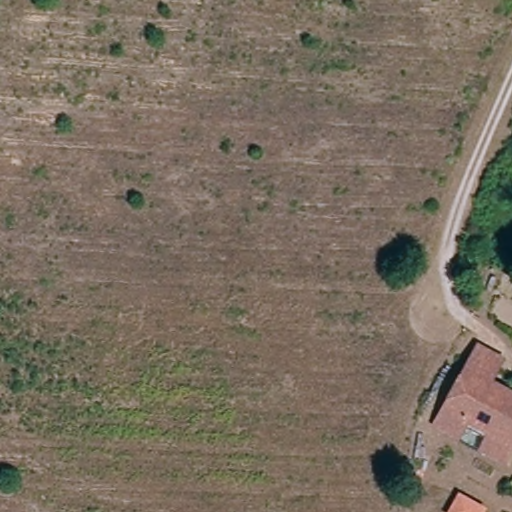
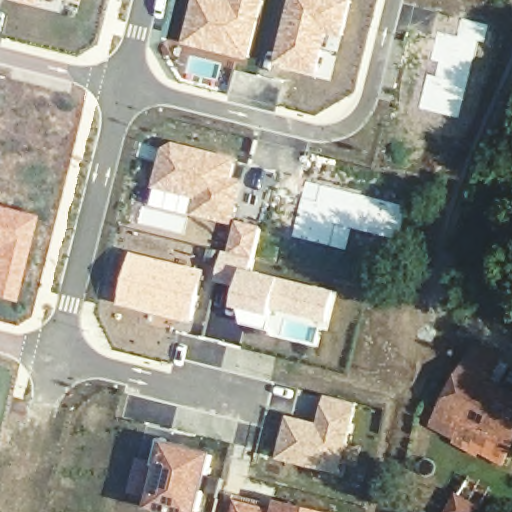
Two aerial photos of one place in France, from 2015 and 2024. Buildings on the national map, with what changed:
new [(43,7),(18,0),(44,0),(43,7)]
new [(83,2),(74,0),(83,0),(83,2)]
new [(193,0),(267,0),(250,61),(183,43),(193,0)]
new [(289,0),(353,0),(337,57),(328,54),(318,77),(274,65),(289,0)]
new [(164,149),(165,146),(173,142),(177,142),(240,156),(235,177),(246,180),(235,226),(191,215),(153,206),(155,190),(164,149)]
new [(305,181),(343,191),(338,225),(349,229),(344,249),(292,236),(305,181)]
new [(12,302),(0,299),(0,206),(34,215),(12,302)]
new [(209,248),(228,252),(237,220),(263,227),(252,268),(248,267),(241,287),(218,282),(221,267),(205,262),(209,248)]
new [(134,252),(205,272),(192,323),(120,305),(134,252)]
new [(241,287),(248,267),(252,268),(336,291),(326,325),(274,308),(268,330),(242,323),(242,310),(236,308),(241,287)]
unchanged [(491,452),(443,426),(474,366),(497,377),(501,371),(512,376),(512,463),(491,452)]
new [(289,415),(318,422),(326,394),(361,405),(342,476),(278,460),(289,415)]
new [(139,457),(153,462),(161,438),(218,452),(202,512),(155,512),(149,511),(152,500),(129,493),(139,457)]
new [(275,505),(273,512),(233,512),(237,495),(275,505)]
new [(277,499),(328,512),(273,512),(275,505),(277,499)]

